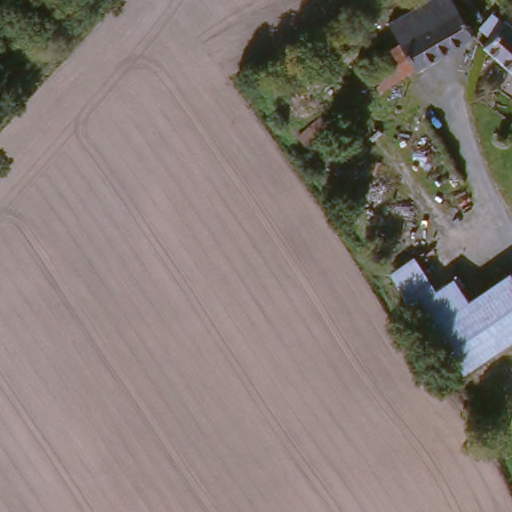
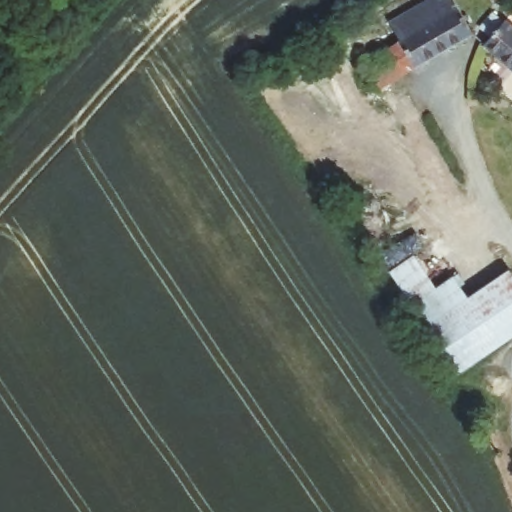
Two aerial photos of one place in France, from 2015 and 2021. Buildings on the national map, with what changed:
unchanged [(406,52),(390,24),(433,0),(447,0),(471,38),(418,70),(406,52)]
unchanged [(512,79),(479,51),(502,26),(512,34),(512,79)]
unchanged [(373,96),(362,78),(406,52),(418,70),(373,96)]
unchanged [(455,277),(468,297),(508,270),(512,274),(512,344),(455,381),(378,282),(416,258),(435,288),(455,277)]

